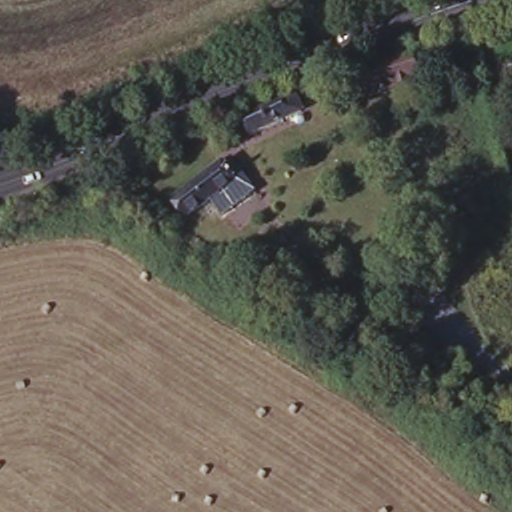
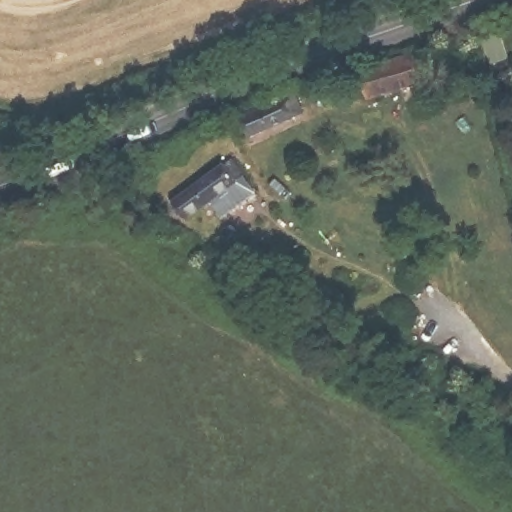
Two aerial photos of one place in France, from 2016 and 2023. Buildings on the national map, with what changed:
unchanged [(403,53),(417,78),(366,102),(352,77),(403,53)]
unchanged [(295,92),(305,110),(252,135),(242,118),(295,92)]
unchanged [(229,157),(256,189),(222,214),(207,198),(186,214),(172,199),(229,157)]
unchanged [(278,241),(271,254),(255,243),(263,231),(278,241)]

